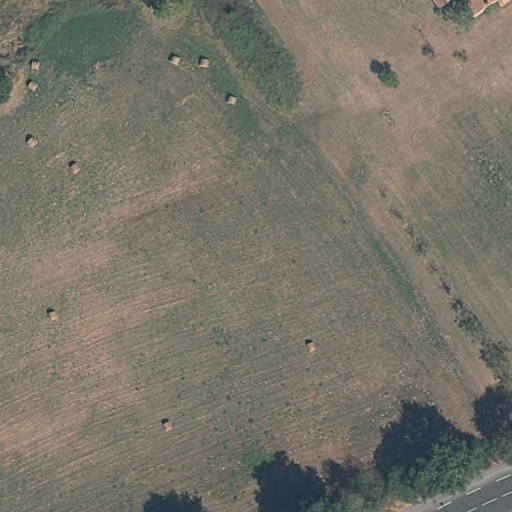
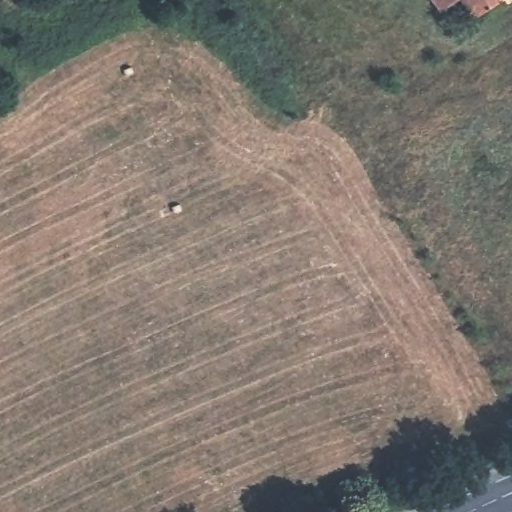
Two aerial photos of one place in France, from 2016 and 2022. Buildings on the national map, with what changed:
unchanged [(451,0),(438,9),(432,0),(451,0)]
unchanged [(474,17),(461,0),(510,0),(501,7),(495,1),(474,17)]

